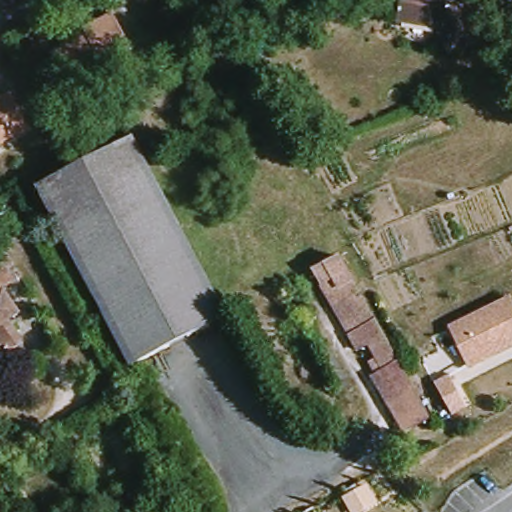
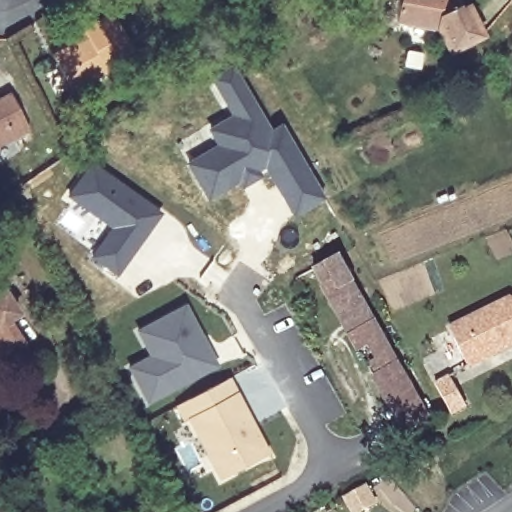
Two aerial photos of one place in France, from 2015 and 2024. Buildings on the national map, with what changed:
unchanged [(458,5),(464,2),(467,8),(472,5),(488,36),(457,53),(444,30),(401,21),(405,0),(455,0),(458,5)]
unchanged [(110,53),(114,59),(73,85),(51,52),(66,43),(62,37),(80,25),(108,7),(130,40),(110,53)]
new [(214,144),(205,127),(229,113),(208,77),(231,62),(270,127),(281,121),(325,198),(293,217),(266,171),(207,200),(184,161),(214,144)]
unchanged [(0,145),(0,96),(3,94),(25,127),(0,145)]
demolished [(130,366),(38,188),(133,138),(226,317),(130,366)]
new [(91,256),(111,227),(67,195),(89,162),(162,213),(117,275),(91,256)]
unchanged [(429,422),(415,429),(377,359),(370,347),(336,282),(323,289),(316,275),(342,260),(429,422)]
unchanged [(3,271),(0,274),(0,267),(3,271)]
unchanged [(4,288),(0,291),(0,281),(4,288)]
unchanged [(336,282),(370,347),(356,355),(323,289),(336,282)]
unchanged [(512,295),(512,347),(470,370),(448,325),(512,295)]
unchanged [(1,301),(15,322),(3,329),(18,351),(0,363),(0,302),(1,301)]
new [(147,404),(126,368),(148,355),(135,331),(185,305),(217,367),(147,404)]
unchanged [(415,429),(403,437),(371,377),(376,373),(370,362),(377,359),(415,429)]
new [(449,376),(466,406),(452,414),(435,384),(449,376)]
new [(188,418),(183,421),(175,407),(187,400),(195,414),(234,393),(266,453),(219,478),(188,418)]
unchanged [(379,504),(365,512),(350,512),(342,496),(367,482),(379,504)]

